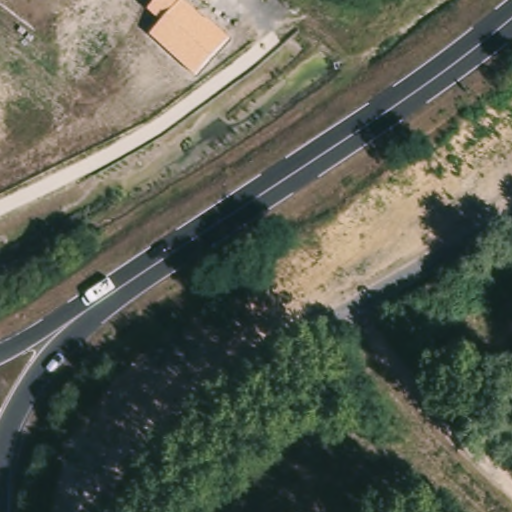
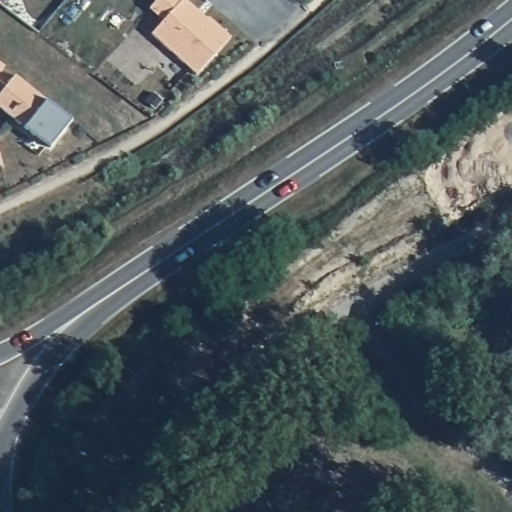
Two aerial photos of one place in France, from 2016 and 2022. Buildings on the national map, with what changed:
unchanged [(157,0),(184,0),(229,39),(197,77),(150,35),(161,22),(149,10),(157,0)]
new [(0,71),(0,65),(3,67),(0,71)]
new [(71,122),(49,149),(0,109),(0,93),(14,76),(71,122)]

